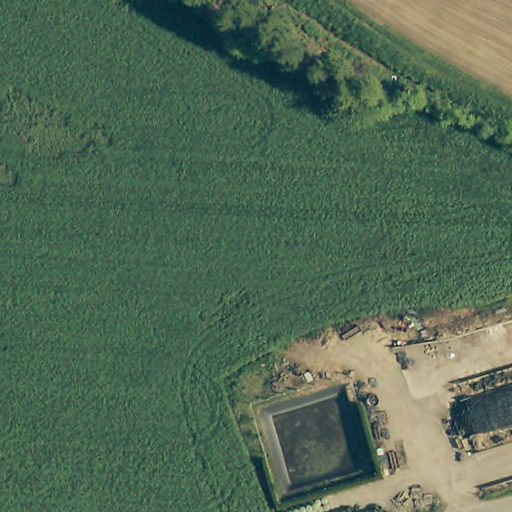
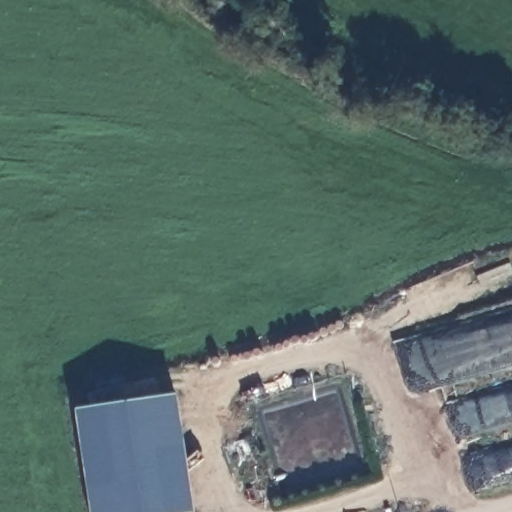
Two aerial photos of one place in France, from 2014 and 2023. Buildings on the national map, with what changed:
new [(195,511),(189,512),(91,512),(75,409),(177,393),(195,511)]

